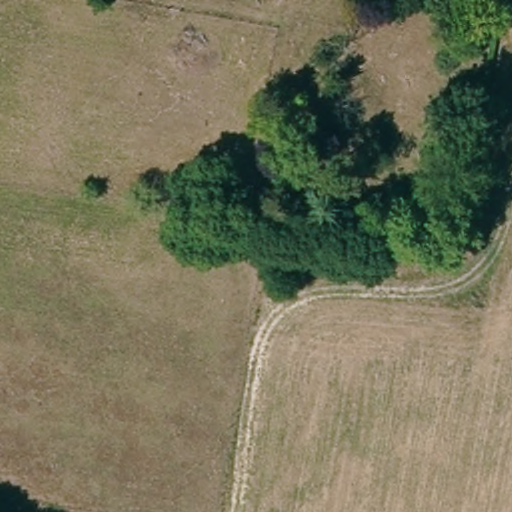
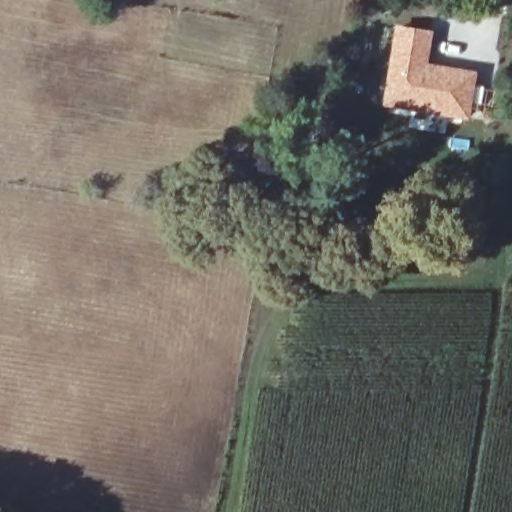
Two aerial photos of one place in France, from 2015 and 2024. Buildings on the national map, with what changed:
new [(428,33),(423,65),(472,74),(466,116),(386,104),(398,30),(428,33)]

